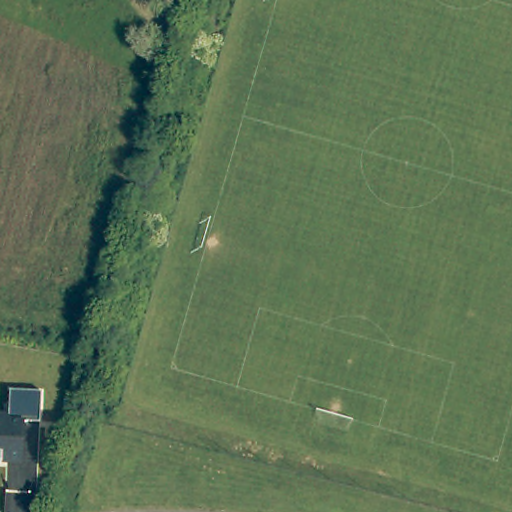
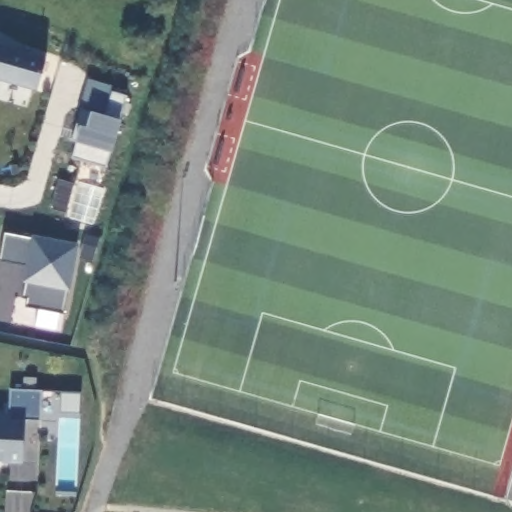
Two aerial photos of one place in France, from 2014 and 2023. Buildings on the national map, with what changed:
new [(0,81),(0,44),(45,57),(37,91),(0,81)]
new [(112,152),(106,167),(72,157),(76,143),(70,141),(81,108),(91,111),(105,115),(112,92),(126,96),(121,120),(112,152)]
new [(5,233),(33,238),(34,234),(79,244),(69,291),(64,314),(26,306),(29,297),(24,295),(25,283),(22,282),(26,265),(0,260),(5,233)]
unchanged [(12,389),(41,391),(40,422),(24,422),(23,461),(0,462),(0,415),(10,415),(12,389)]

